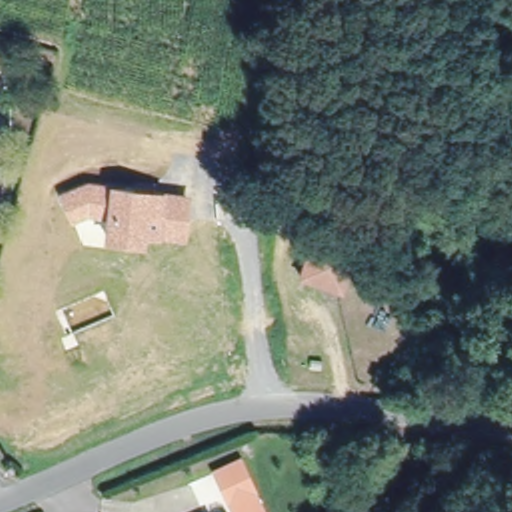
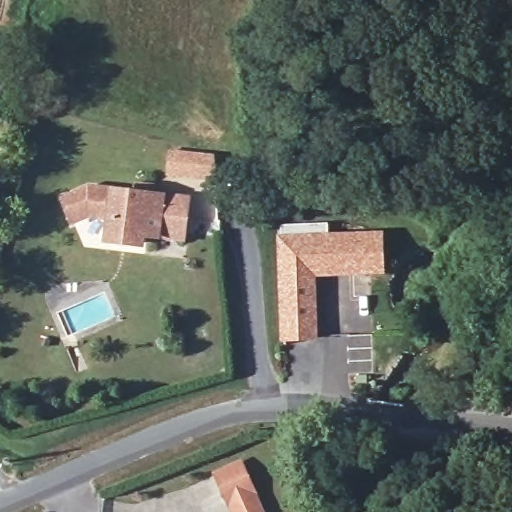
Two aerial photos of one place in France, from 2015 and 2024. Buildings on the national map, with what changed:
new [(171,150),(216,155),(214,180),(167,176),(171,150)]
unchanged [(89,219),(71,225),(58,196),(88,185),(110,186),(164,193),(189,196),(186,242),(160,239),(144,239),(144,248),(103,245),(105,220),(89,219)]
new [(281,342),(277,235),(281,235),(281,226),(328,222),(328,232),(384,231),(386,275),(317,275),(318,340),(281,342)]
demolished [(356,248),(340,292),(300,277),(315,234),(356,248)]
unchanged [(241,458),(265,512),(231,512),(212,471),(241,458)]

